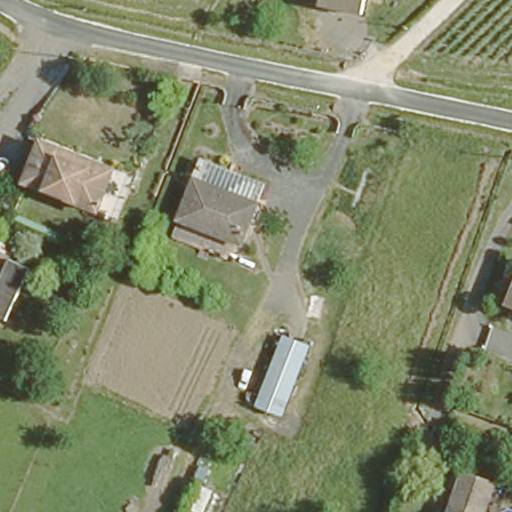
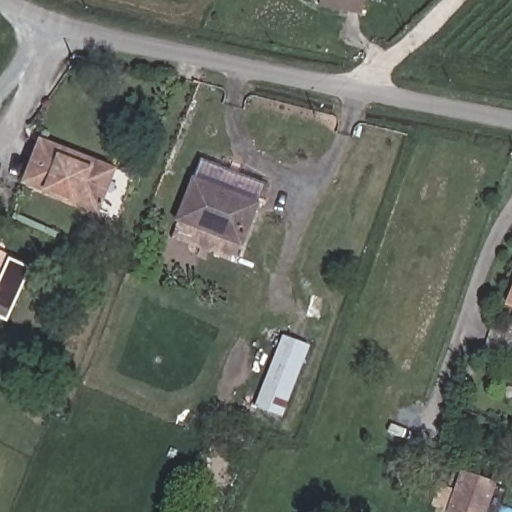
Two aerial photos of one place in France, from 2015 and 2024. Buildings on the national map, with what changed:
unchanged [(370,0),(367,11),(327,1),(327,0),(370,0)]
unchanged [(114,212),(97,204),(29,171),(47,131),(115,165),(132,173),(114,212)]
unchanged [(242,236),(178,211),(203,151),(266,175),(242,236)]
unchanged [(20,255),(0,288),(0,243),(20,255)]
unchanged [(512,295),(511,295),(512,293),(512,295)]
unchanged [(312,342),(272,412),(249,397),(288,328),(312,342)]
unchanged [(498,486),(493,498),(486,512),(466,512),(449,504),(460,482),(465,471),(498,486)]

